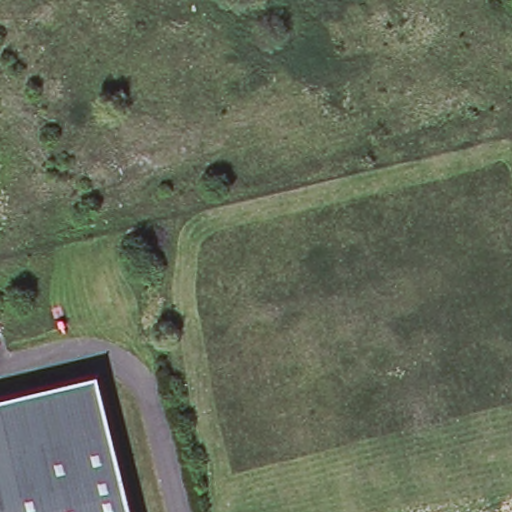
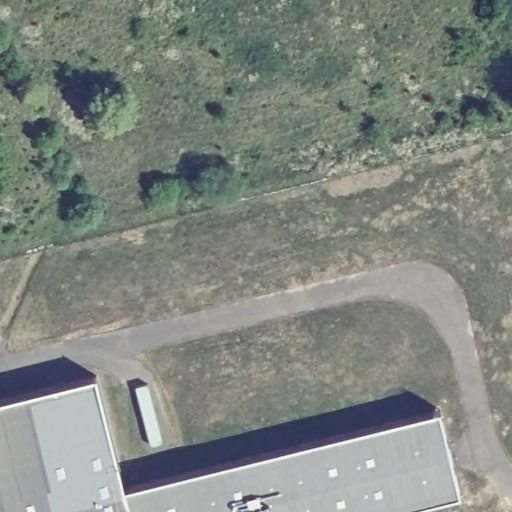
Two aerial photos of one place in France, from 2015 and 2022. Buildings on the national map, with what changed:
unchanged [(134,512),(0,512),(0,401),(100,376),(134,512)]
new [(389,512),(134,512),(127,487),(440,408),(460,494),(389,512)]

